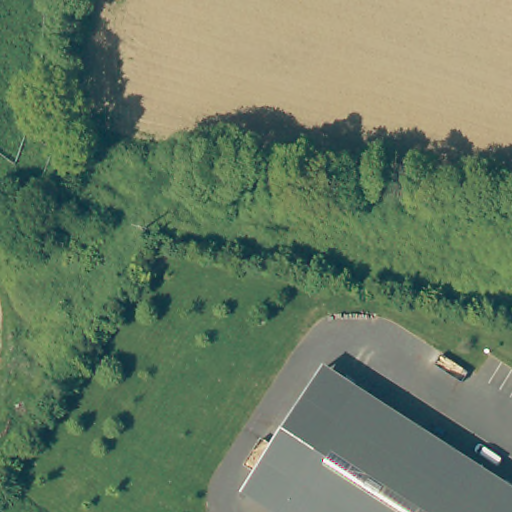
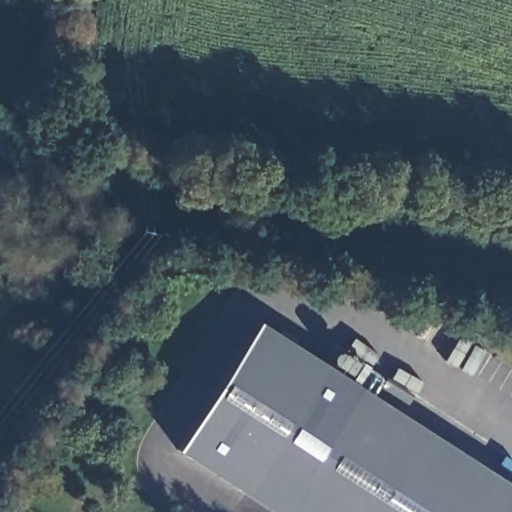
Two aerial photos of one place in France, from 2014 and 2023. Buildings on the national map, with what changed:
new [(176,450),(259,321),(327,366),(242,493),(176,450)]
unchanged [(242,493),(327,366),(512,487),(512,512),(272,512),(242,493)]

